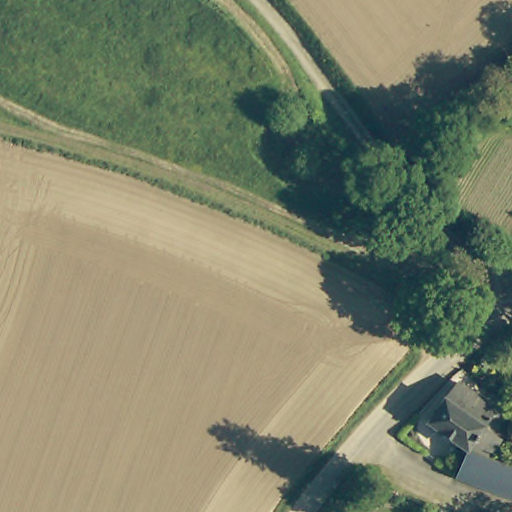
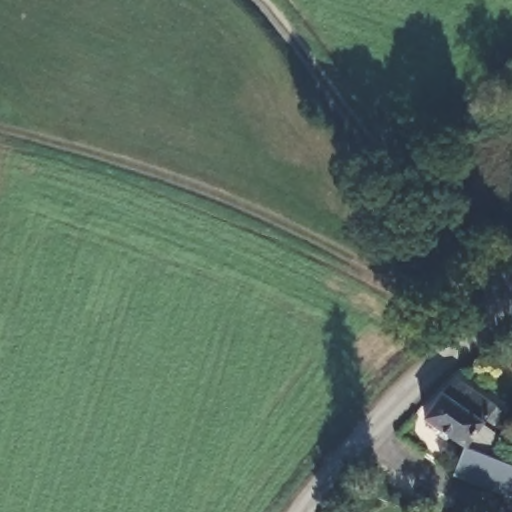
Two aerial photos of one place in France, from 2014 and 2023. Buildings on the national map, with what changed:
unchanged [(508,100),(497,92),(512,75),(512,116),(501,109),(508,100)]
unchanged [(458,378),(495,404),(510,414),(503,428),(500,433),(489,453),(512,462),(512,492),(456,470),(466,448),(426,417),(458,378)]

